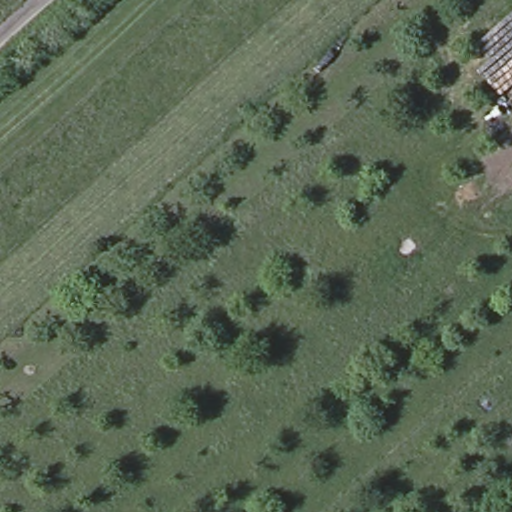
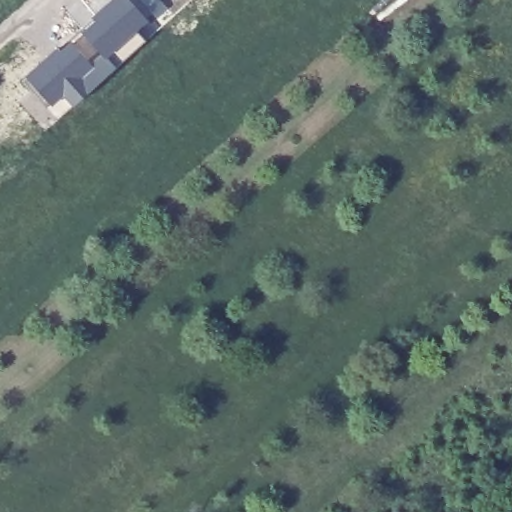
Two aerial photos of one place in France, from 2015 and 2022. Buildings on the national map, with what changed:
new [(22,79),(45,59),(56,49),(95,14),(107,3),(110,0),(141,0),(150,10),(161,22),(145,37),(75,101),(57,117),(45,104),(22,79)]

